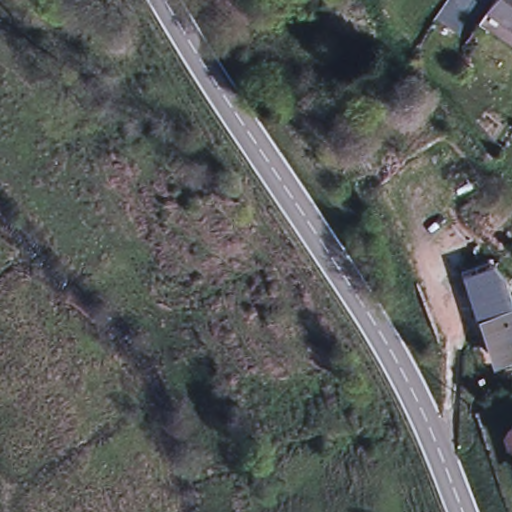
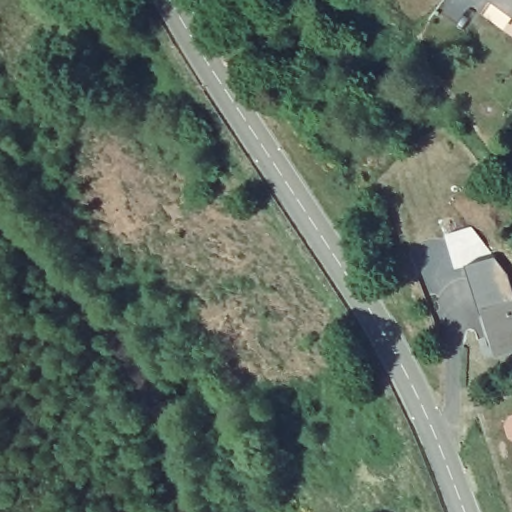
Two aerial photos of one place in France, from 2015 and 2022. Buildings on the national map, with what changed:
unchanged [(485,5),(489,0),(512,0),(512,25),(491,9),(485,5)]
unchanged [(512,306),(512,351),(501,354),(487,314),(512,306)]
unchanged [(510,426),(512,423),(512,436),(510,426)]

